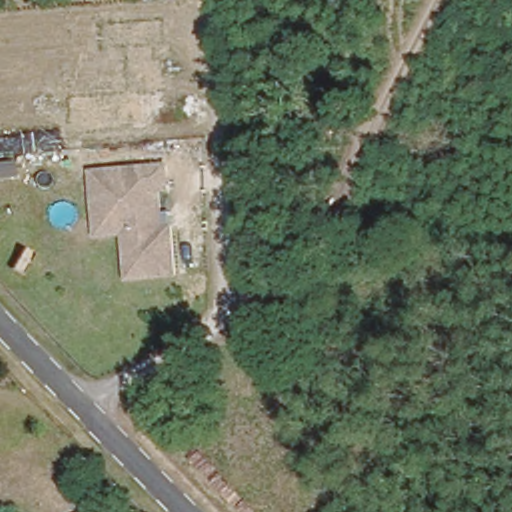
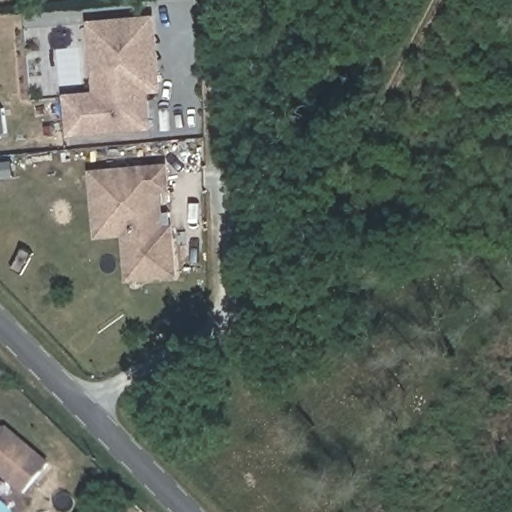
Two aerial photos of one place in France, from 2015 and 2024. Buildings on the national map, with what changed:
new [(152,129),(66,136),(63,94),(94,91),(87,20),(154,14),(161,91),(149,92),(152,129)]
unchanged [(171,191),(163,192),(165,228),(175,227),(179,277),(126,281),(123,236),(94,238),(87,170),(169,161),(171,191)]
new [(23,496),(0,477),(0,428),(8,427),(50,463),(23,496)]

